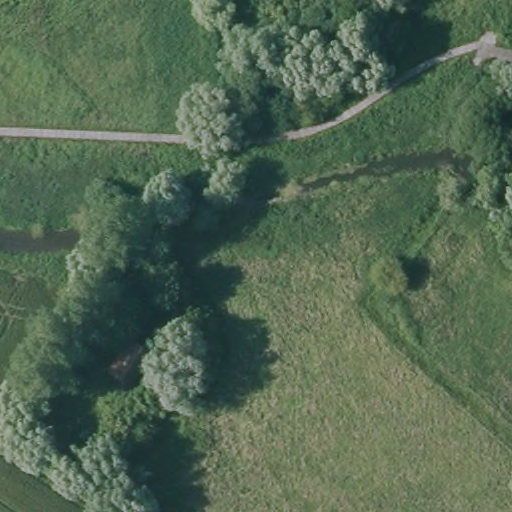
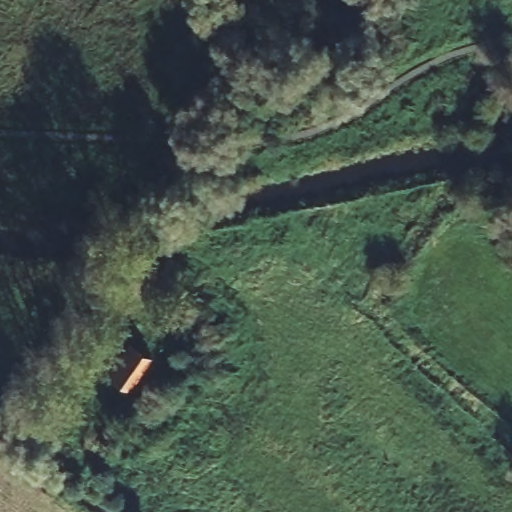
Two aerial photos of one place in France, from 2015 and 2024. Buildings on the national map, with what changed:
unchanged [(134,349),(151,362),(126,395),(110,382),(134,349)]

